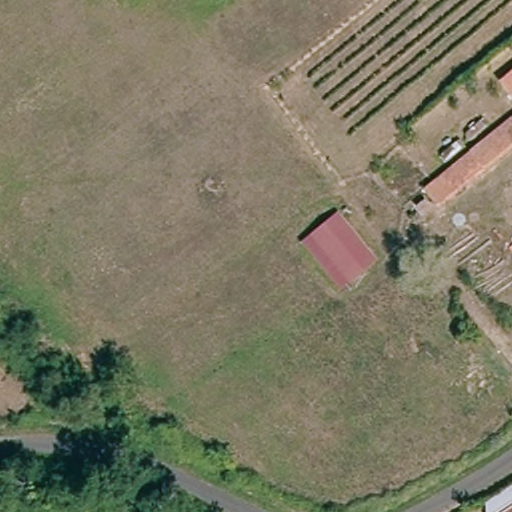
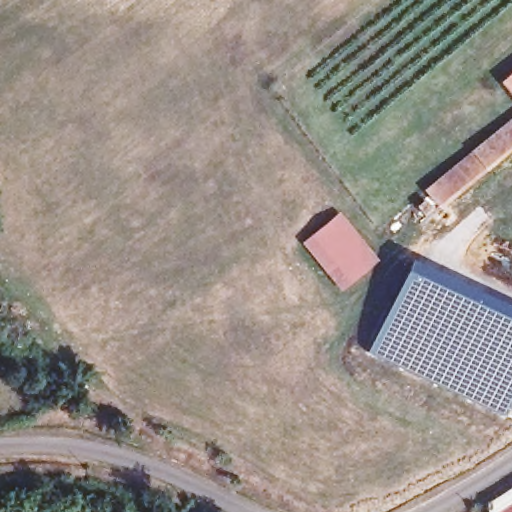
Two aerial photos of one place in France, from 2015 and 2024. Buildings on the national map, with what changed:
unchanged [(512,97),(500,82),(512,73),(512,97)]
unchanged [(512,144),(434,205),(420,187),(512,114),(512,144)]
unchanged [(317,240),(343,217),(382,265),(355,288),(317,240)]
new [(364,353),(408,262),(512,310),(512,398),(503,417),(364,353)]
unchanged [(512,482),(512,512),(482,512),(482,500),(512,482)]

